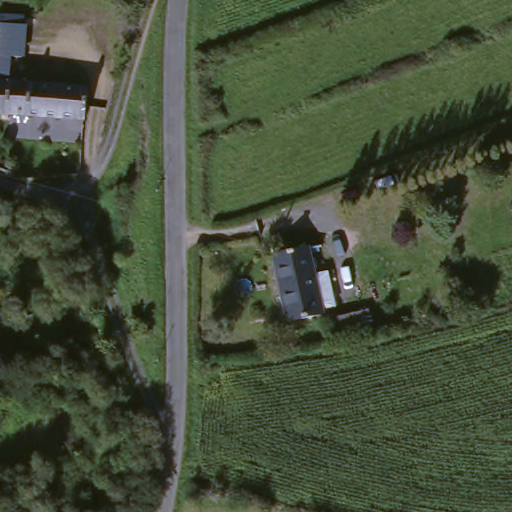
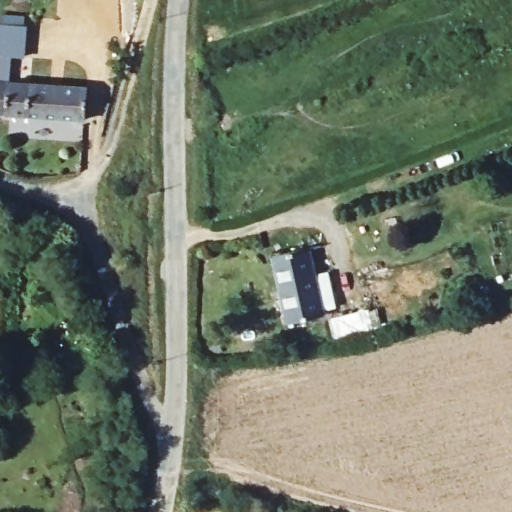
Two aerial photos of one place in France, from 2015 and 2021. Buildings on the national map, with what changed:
unchanged [(21,77),(98,82),(95,115),(65,112),(54,112),(0,108),(0,20),(24,18),(21,77)]
unchanged [(330,306),(319,308),(320,313),(280,322),(266,256),(306,247),(311,274),(323,272),(330,306)]
unchanged [(363,310),(368,336),(331,345),(324,319),(363,310)]

